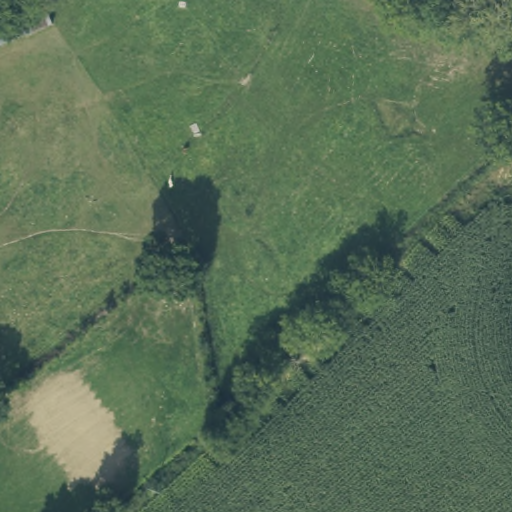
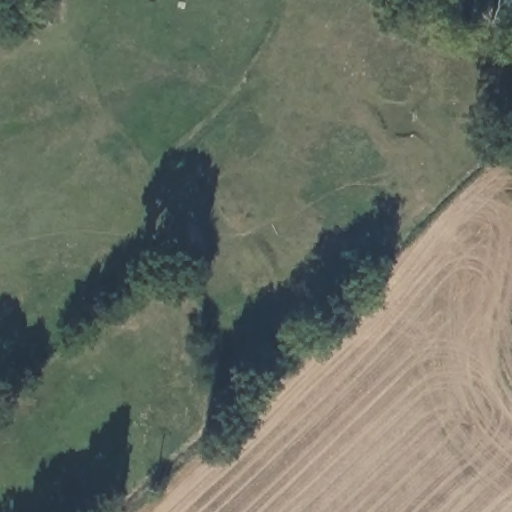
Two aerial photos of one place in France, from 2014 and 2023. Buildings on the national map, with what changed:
unchanged [(14,16),(22,32),(0,42),(0,23),(14,16)]

